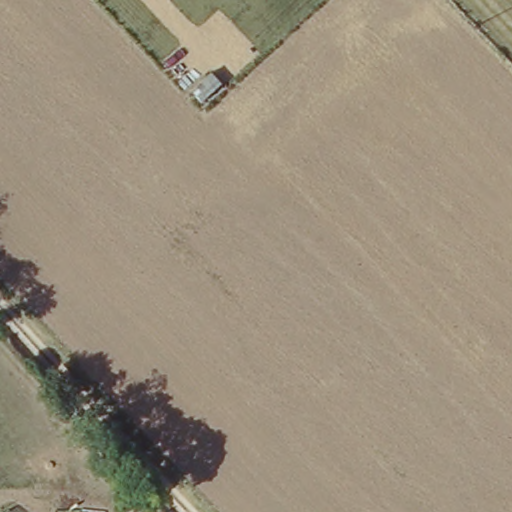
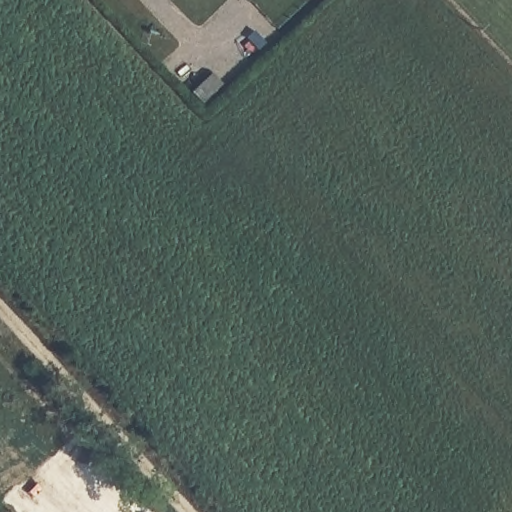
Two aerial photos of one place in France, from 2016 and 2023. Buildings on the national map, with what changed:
[]

